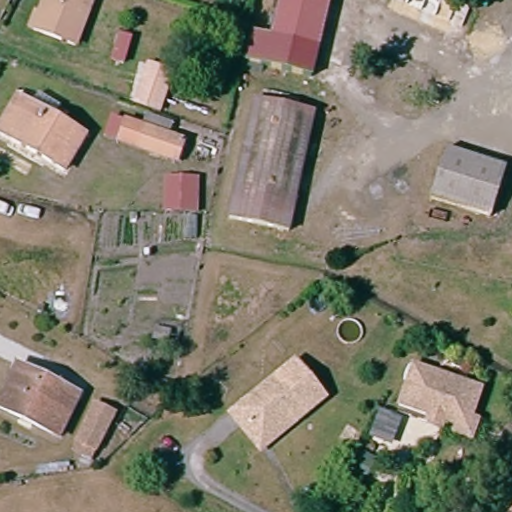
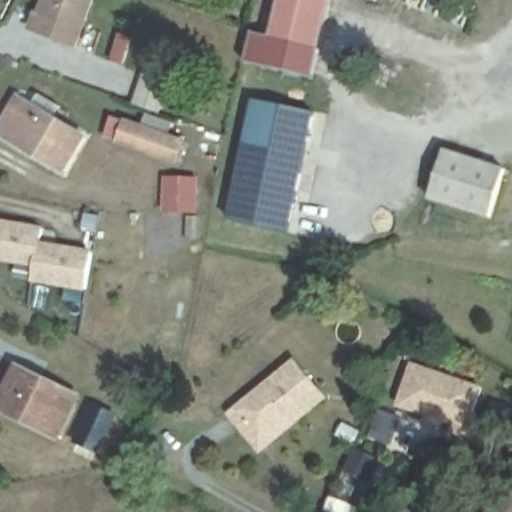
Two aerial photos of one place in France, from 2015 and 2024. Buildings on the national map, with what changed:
unchanged [(28,5),(38,8),(41,0),(82,0),(66,43),(30,30),(19,26),(28,5)]
unchanged [(322,31),(320,39),(312,75),(246,61),(252,31),(270,35),(273,21),(277,0),(329,0),(322,31)]
unchanged [(118,33),(135,38),(128,61),(111,56),(118,33)]
unchanged [(147,61),(171,69),(158,107),(133,99),(147,61)]
unchanged [(9,99),(22,106),(29,94),(54,109),(46,122),(72,137),(54,169),(0,138),(0,116),(9,99)]
unchanged [(257,107),(314,119),(290,233),(233,222),(257,107)]
unchanged [(177,167),(102,139),(111,115),(188,140),(177,167)]
unchanged [(446,147),(508,166),(493,216),(431,197),(446,147)]
unchanged [(197,179),(193,210),(166,207),(168,176),(197,179)]
new [(41,230),(39,245),(91,252),(86,290),(33,282),(36,267),(0,262),(0,224),(41,230)]
unchanged [(257,459),(223,418),(294,359),(327,400),(257,459)]
unchanged [(16,367),(79,392),(63,433),(0,407),(16,367)]
unchanged [(474,416),(481,417),(474,442),(417,427),(421,414),(396,408),(409,367),(480,385),(474,416)]
unchanged [(91,402),(122,421),(98,454),(90,448),(83,458),(65,445),(91,402)]
unchanged [(512,512),(509,512),(512,508),(512,512)]

